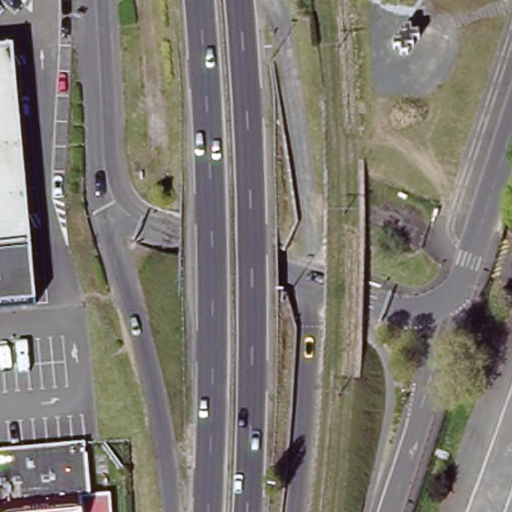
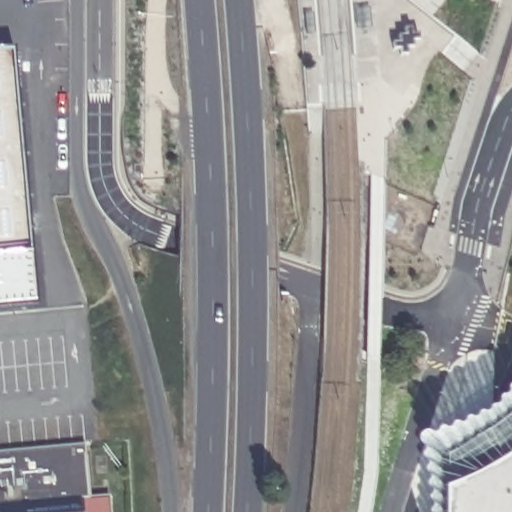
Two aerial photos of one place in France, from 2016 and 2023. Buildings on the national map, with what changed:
unchanged [(407,23),(423,36),(405,59),(392,46),(407,23)]
unchanged [(23,152),(32,252),(0,256),(0,51),(13,50),(23,152)]
unchanged [(0,313),(0,256),(32,252),(37,309),(0,313)]
unchanged [(89,497),(110,495),(111,512),(0,512),(0,452),(22,449),(85,444),(89,497)]
new [(450,512),(450,496),(490,479),(512,465),(512,512),(450,512)]

